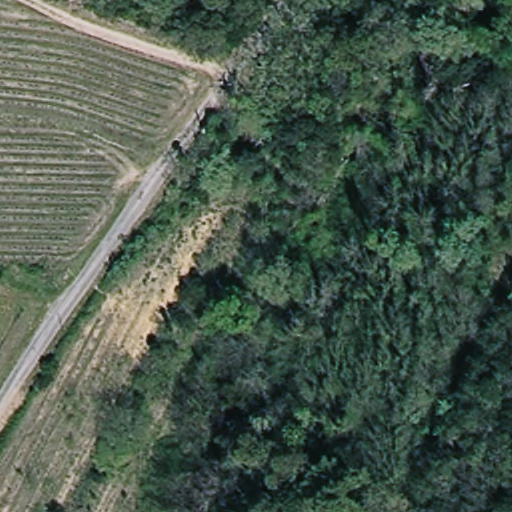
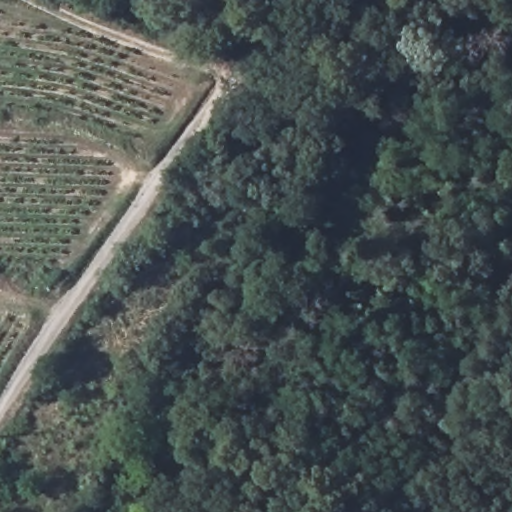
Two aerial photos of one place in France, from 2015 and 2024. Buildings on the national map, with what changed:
unchanged [(351,26),(341,42),(321,33),(332,16),(351,26)]

